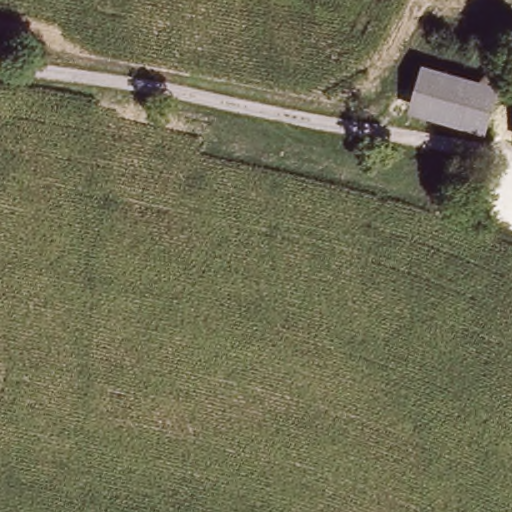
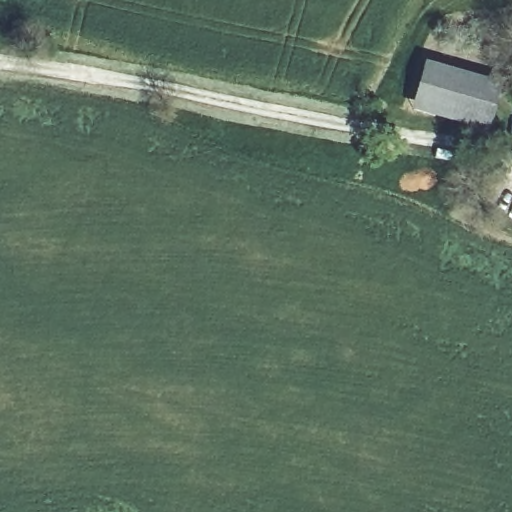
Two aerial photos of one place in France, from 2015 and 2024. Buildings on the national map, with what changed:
unchanged [(415,106),(427,65),(502,85),(490,127),(415,106)]

